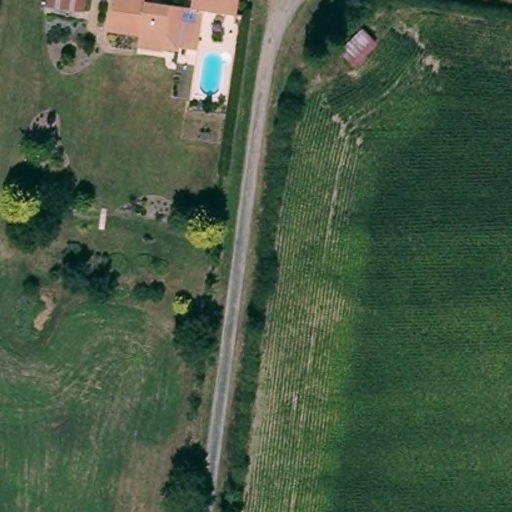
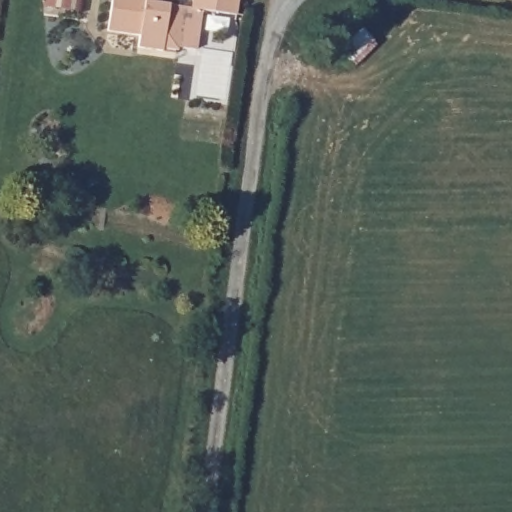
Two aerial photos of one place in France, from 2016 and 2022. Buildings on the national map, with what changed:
unchanged [(47,7),(48,0),(80,0),(78,12),(47,7)]
unchanged [(190,7),(191,0),(237,0),(235,14),(203,10),(197,50),(181,47),(180,50),(161,46),(160,52),(136,48),(137,39),(104,35),(109,0),(149,0),(149,4),(190,7)]

